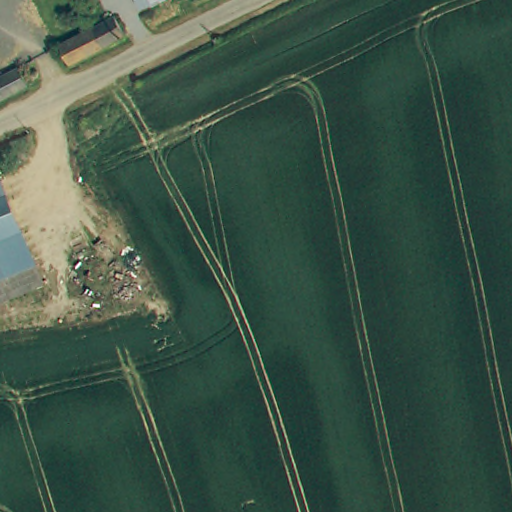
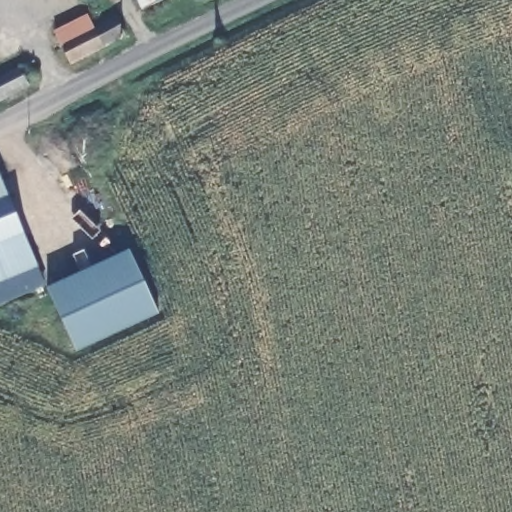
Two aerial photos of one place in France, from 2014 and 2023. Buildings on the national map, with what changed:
unchanged [(142,9),(138,0),(164,0),(142,9)]
unchanged [(72,61),(62,41),(97,24),(117,14),(126,32),(104,44),(72,61)]
unchanged [(25,67),(34,85),(0,101),(0,81),(25,67)]
demolished [(0,162),(36,257),(39,264),(0,279),(0,162)]
new [(0,305),(0,177),(49,285),(127,251),(157,315),(77,352),(45,287),(0,305)]

